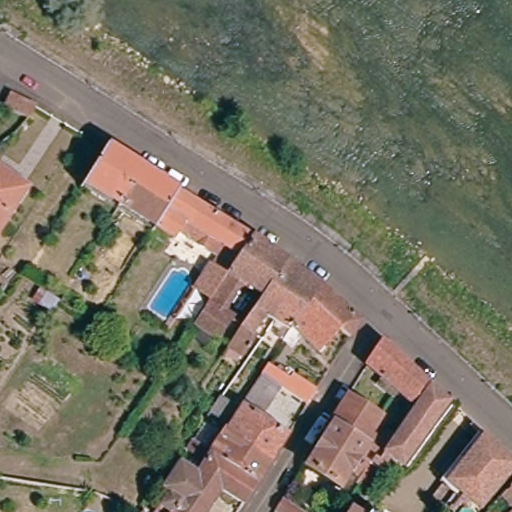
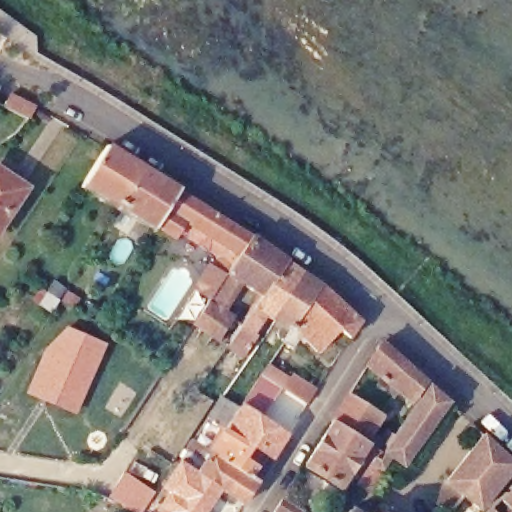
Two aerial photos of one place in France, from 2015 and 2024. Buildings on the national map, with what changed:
unchanged [(4,107),(10,95),(34,108),(29,119),(4,107)]
unchanged [(144,214),(146,210),(131,200),(121,194),(118,197),(94,183),(114,147),(186,191),(165,227),(144,214)]
unchanged [(0,238),(0,169),(32,189),(0,238)]
unchanged [(234,276),(230,282),(206,320),(192,310),(231,248),(194,224),(184,239),(165,227),(186,191),(260,236),(237,272),(234,276)]
unchanged [(260,236),(295,262),(272,295),(237,272),(260,236)]
unchanged [(272,295),(295,262),(313,273),(282,320),(275,317),(250,355),(239,346),(272,295)]
unchanged [(282,320),(313,273),(330,285),(372,321),(361,334),(349,325),(328,350),(312,335),(301,349),(294,341),(287,333),(292,326),(282,320)]
new [(38,286),(44,290),(52,278),(81,298),(73,310),(59,301),(51,314),(29,299),(38,286)]
unchanged [(247,294),(236,309),(244,317),(229,342),(203,324),(206,320),(230,282),(247,294)]
new [(44,349),(64,324),(107,342),(76,415),(24,393),(44,349)]
unchanged [(371,365),(386,341),(436,387),(420,408),(371,365)]
unchanged [(229,428),(214,417),(222,405),(228,396),(245,406),(267,375),(273,364),(294,380),(290,389),(285,386),(266,420),(293,436),(278,459),(261,483),(214,452),(229,428)]
unchanged [(377,458),(383,461),(388,453),(420,408),(436,387),(453,404),(408,467),(398,462),(377,493),(361,483),(377,458)]
unchanged [(337,420),(351,394),(387,418),(372,442),(337,420)]
unchanged [(337,420),(372,442),(374,444),(347,487),(309,463),(337,420)]
unchanged [(472,496),(455,482),(492,435),(507,450),(472,496)]
unchanged [(507,450),(512,455),(512,484),(490,509),(472,496),(507,450)]
unchanged [(214,452),(261,483),(247,505),(223,487),(200,473),(214,452)]
unchanged [(223,487),(207,512),(172,512),(164,506),(173,492),(168,488),(180,468),(184,463),(200,473),(223,487)]
new [(155,490),(143,512),(131,512),(107,497),(124,470),(155,490)]
unchanged [(293,512),(280,504),(286,494),(314,512),(293,512)]
unchanged [(499,512),(512,496),(512,512),(499,512)]
unchanged [(369,512),(353,512),(357,504),(369,512)]
unchanged [(457,508),(460,510),(461,512),(450,512),(453,508),(457,508)]
unchanged [(377,512),(373,512),(374,510),(377,512)]

